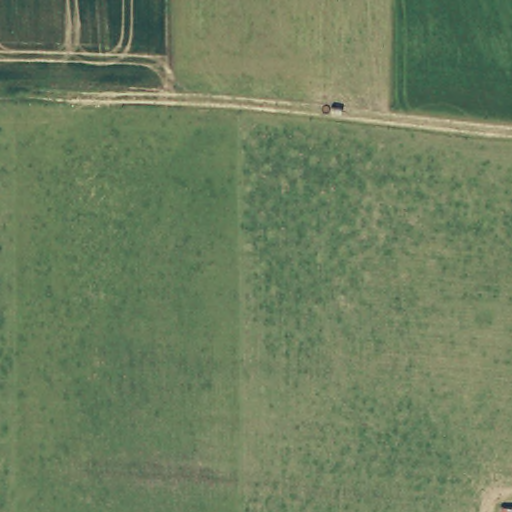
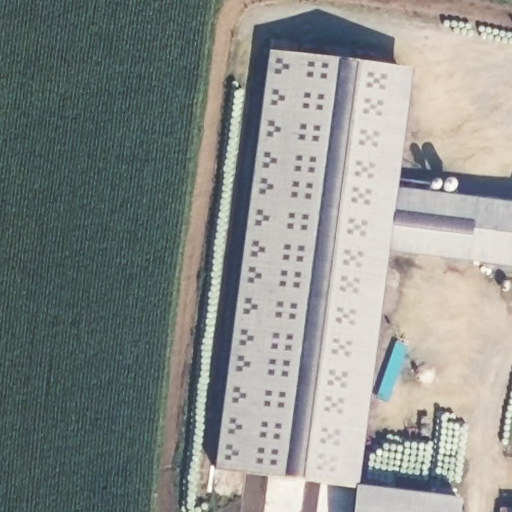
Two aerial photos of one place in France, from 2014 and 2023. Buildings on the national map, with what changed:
new [(396,187),(425,191),(429,174),(456,177),(453,195),(512,203),(512,267),(387,253),(357,489),(214,470),(268,50),(411,69),(396,187)]
new [(357,489),(357,485),(458,498),(457,512),(353,512),(357,489)]
unchanged [(512,507),(512,512),(504,512),(505,506),(512,507)]

